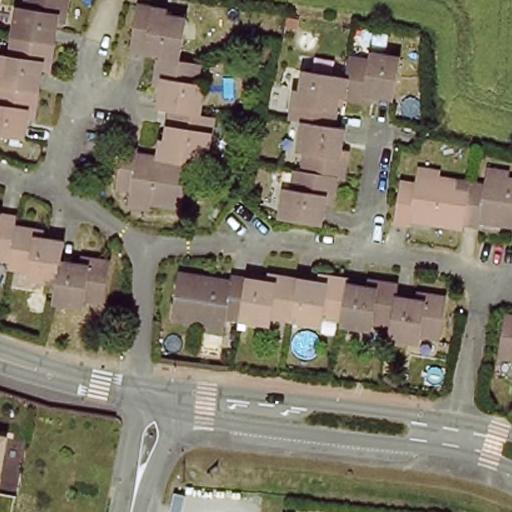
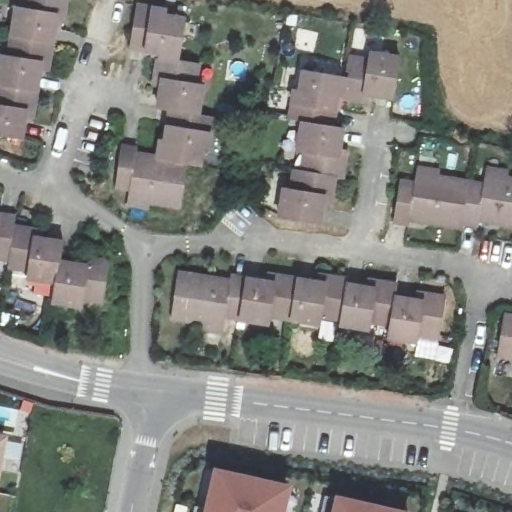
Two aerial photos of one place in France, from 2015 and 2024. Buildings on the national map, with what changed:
unchanged [(21,6),(34,5),(34,0),(74,0),(72,15),(63,13),(58,45),(17,40),(21,6)]
unchanged [(161,56),(160,51),(129,45),(136,5),(166,10),(167,18),(188,20),(180,59),(161,56)]
unchanged [(4,55),(15,55),(17,40),(58,45),(56,62),(46,62),(41,92),(1,87),(4,55)]
unchanged [(353,70),(357,52),(377,55),(376,45),(405,50),(398,94),(371,90),(370,99),(351,95),(353,70)]
unchanged [(176,110),(161,108),(163,80),(156,77),(161,56),(180,59),(200,64),(196,82),(204,85),(198,114),(176,110)]
unchanged [(303,116),(296,114),(300,84),(307,85),(309,65),(353,70),(351,95),(343,92),(337,121),(303,116)]
unchanged [(38,107),(30,108),(25,142),(0,138),(0,95),(1,87),(41,92),(38,107)]
unchanged [(198,114),(213,118),(208,145),(202,146),(200,167),(187,164),(159,160),(164,141),(171,140),(176,110),(198,114)]
unchanged [(347,124),(344,150),(353,153),(346,174),(339,175),(304,166),(307,147),(298,145),(303,116),(337,121),(347,124)]
unchanged [(187,164),(179,210),(131,198),(131,193),(112,189),(121,147),(138,151),(138,156),(159,160),(187,164)]
unchanged [(339,175),(336,195),(329,195),(326,222),(284,216),(287,185),(294,186),(296,167),(304,166),(339,175)]
unchanged [(471,228),(471,232),(423,224),(422,231),(402,228),(409,185),(426,187),(427,180),(479,185),(471,228)]
unchanged [(487,224),(485,230),(471,228),(479,185),(491,187),(492,180),(512,181),(512,228),(487,224)]
unchanged [(16,225),(9,257),(0,256),(0,217),(17,220),(16,225)]
unchanged [(16,225),(34,228),(32,236),(66,244),(65,253),(58,280),(26,272),(24,267),(8,265),(9,257),(16,225)]
unchanged [(65,253),(92,260),(94,254),(113,256),(108,295),(91,294),(89,297),(56,291),(58,280),(65,253)]
unchanged [(240,325),(221,322),(220,332),(171,325),(182,280),(229,285),(229,279),(247,283),(240,325)]
unchanged [(247,283),(277,289),(279,282),(298,285),(292,326),(275,324),(274,331),(240,325),(247,283)]
unchanged [(341,325),(325,323),(322,331),(292,326),(298,285),(329,291),(330,285),(346,289),(341,325)]
unchanged [(346,289),(350,295),(376,297),(376,292),(397,295),(395,305),(390,330),(371,328),(371,336),(341,331),(341,325),(346,289)]
unchanged [(395,305),(426,310),(425,306),(431,303),(445,304),(440,345),(424,343),(420,352),(387,345),(390,330),(395,305)]
unchanged [(511,364),(510,354),(493,353),(504,313),(512,314),(512,364),(511,364)]
unchanged [(0,439),(12,441),(0,485),(0,439)]
new [(204,512),(214,466),(293,483),(286,512),(204,512)]
new [(324,512),(328,495),(337,495),(412,512),(324,512)]

